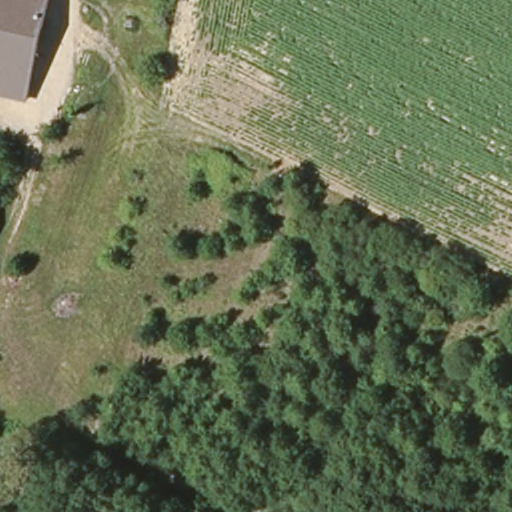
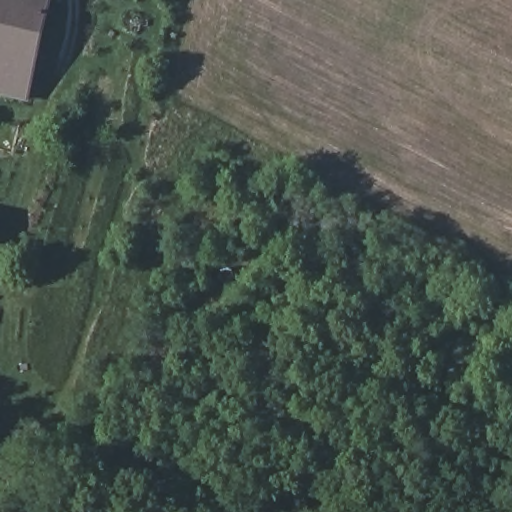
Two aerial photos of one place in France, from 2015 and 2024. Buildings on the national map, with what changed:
unchanged [(2,115),(6,97),(0,96),(0,0),(58,0),(27,124),(2,115)]

